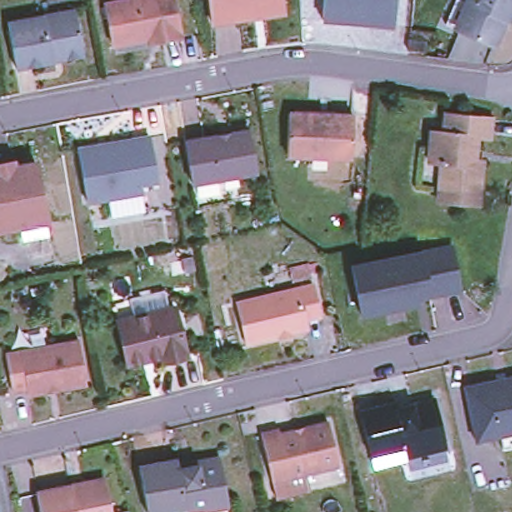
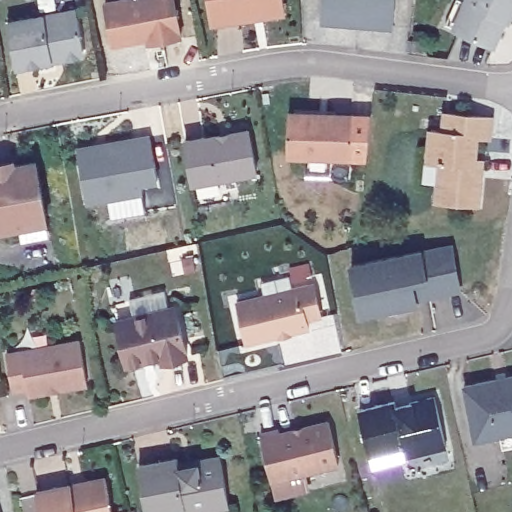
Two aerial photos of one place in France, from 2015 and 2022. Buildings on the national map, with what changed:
unchanged [(133,0),(169,0),(176,42),(145,47),(143,42),(109,47),(101,6),(133,0)]
unchanged [(280,13),(207,22),(205,0),(278,0),(280,13)]
unchanged [(324,0),(397,0),(394,29),(322,24),(324,0)]
unchanged [(502,21),(490,46),(457,31),(443,25),(452,4),(460,7),(463,0),(512,0),(512,7),(508,15),(505,23),(502,21)]
unchanged [(11,70),(3,23),(72,13),(79,53),(75,59),(59,62),(47,64),(11,70)]
unchanged [(412,38),(422,39),(422,42),(427,42),(427,51),(420,51),(420,48),(412,48),(412,38)]
unchanged [(303,165),(303,155),(282,154),(284,113),(349,116),(347,157),(322,156),(322,166),(303,165)]
unchanged [(477,161),(472,202),(433,198),(437,161),(425,159),(427,130),(439,131),(441,113),(487,116),(484,134),(472,133),(470,160),(477,161)]
unchanged [(222,191),(220,181),(187,187),(180,145),(244,134),(251,176),(230,180),(232,190),(222,191)]
unchanged [(108,221),(105,201),(85,205),(77,151),(148,140),(155,185),(138,187),(140,196),(143,216),(108,221)]
unchanged [(18,223),(0,226),(0,160),(12,158),(13,162),(34,159),(45,218),(47,230),(20,235),(18,223)]
unchanged [(350,265),(405,254),(452,246),(455,264),(460,290),(428,296),(428,293),(415,296),(417,303),(360,313),(350,265)]
unchanged [(285,285),(283,273),(302,269),(305,281),(285,285)]
unchanged [(317,332),(238,349),(229,304),(307,288),(317,332)]
unchanged [(173,311),(183,360),(160,365),(158,358),(123,365),(115,324),(173,311)]
unchanged [(83,382),(25,393),(23,386),(8,389),(2,351),(77,338),(83,382)]
unchanged [(496,448),(493,434),(468,439),(458,385),(512,374),(512,444),(496,448)]
unchanged [(394,409),(410,406),(409,402),(431,398),(442,447),(403,455),(370,462),(357,409),(392,401),(394,409)]
unchanged [(253,437),(270,433),(272,437),(321,426),(330,468),(263,484),(253,437)]
unchanged [(174,457),(177,466),(194,463),(193,459),(217,455),(225,505),(202,509),(202,507),(182,510),(182,505),(143,512),(136,464),(174,457)]
unchanged [(112,512),(41,512),(37,493),(72,487),(90,483),(102,481),(108,485),(112,512)]

